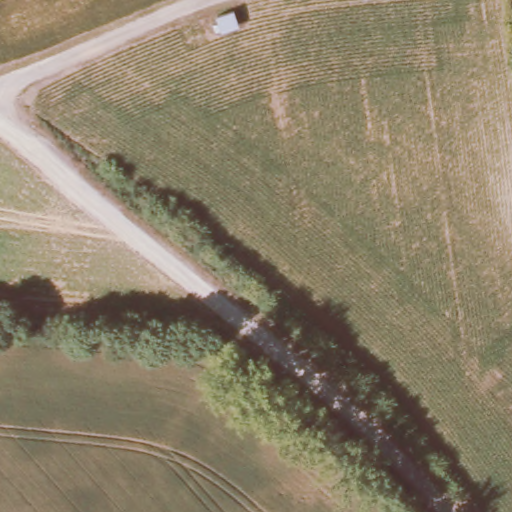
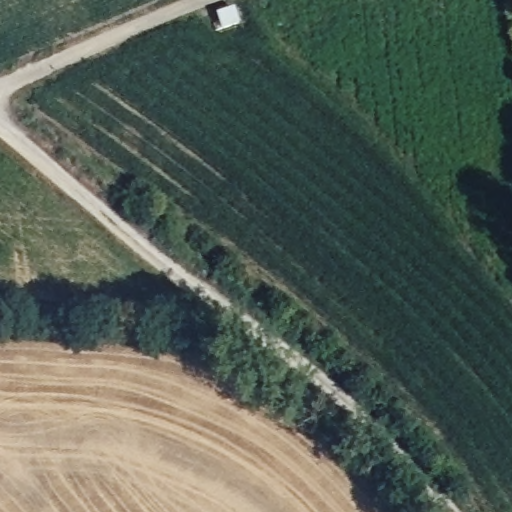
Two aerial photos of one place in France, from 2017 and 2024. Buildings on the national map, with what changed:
unchanged [(236,9),(242,26),(222,33),(216,16),(236,9)]

